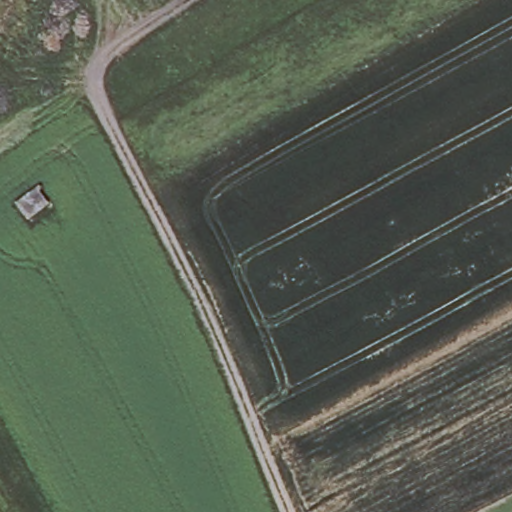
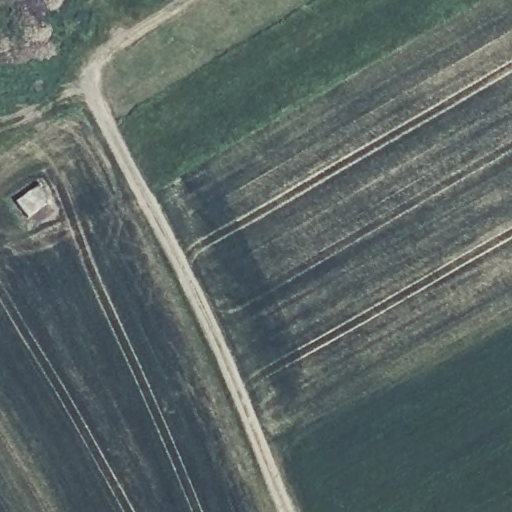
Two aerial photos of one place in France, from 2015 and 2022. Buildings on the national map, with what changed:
[]

